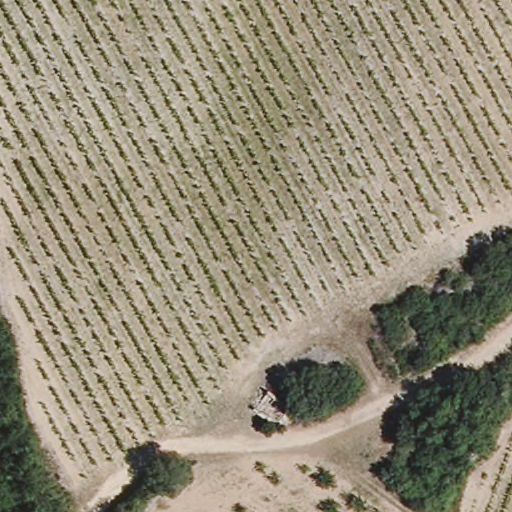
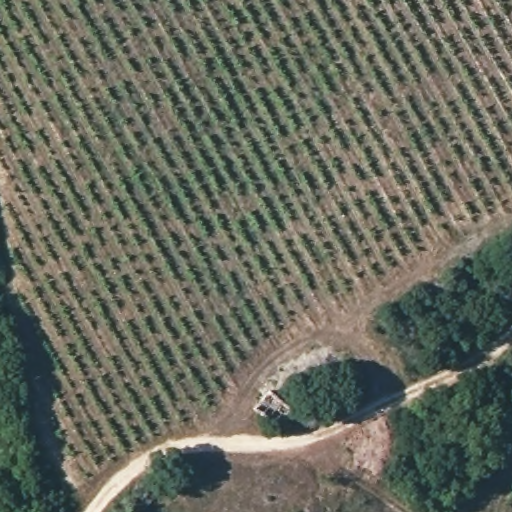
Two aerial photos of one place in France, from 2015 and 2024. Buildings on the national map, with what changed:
unchanged [(271,430),(252,415),(267,393),(287,407),(271,430)]

